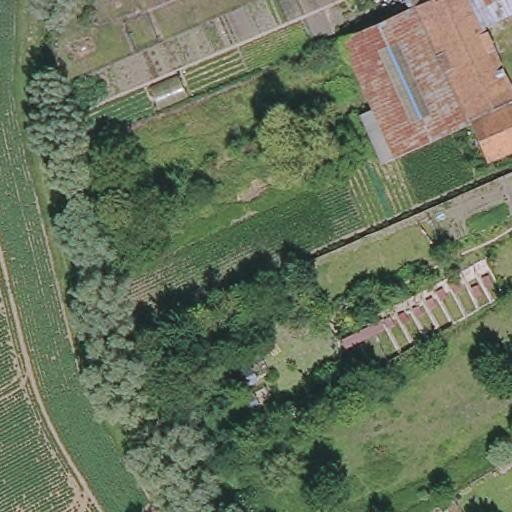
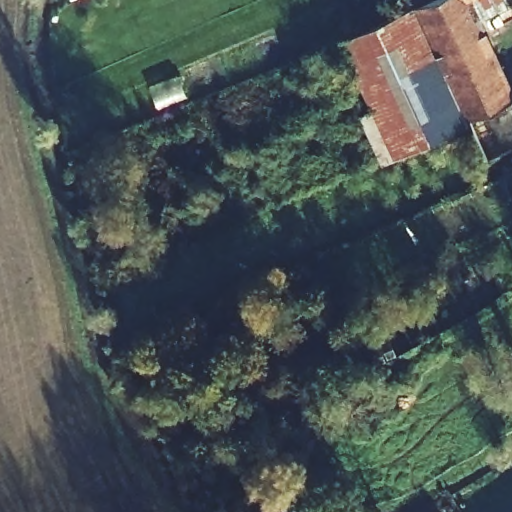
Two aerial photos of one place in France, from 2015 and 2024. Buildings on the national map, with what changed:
unchanged [(437,55),(437,54),(368,85),(362,88),(341,40),(429,0),(512,0),(512,2),(477,19),(512,93),(512,150),(487,162),(485,158),(468,123),(437,55)]
unchanged [(382,162),(380,159),(373,144),(360,116),(372,110),(363,91),(362,88),(368,85),(437,54),(437,55),(468,123),(382,162)]

